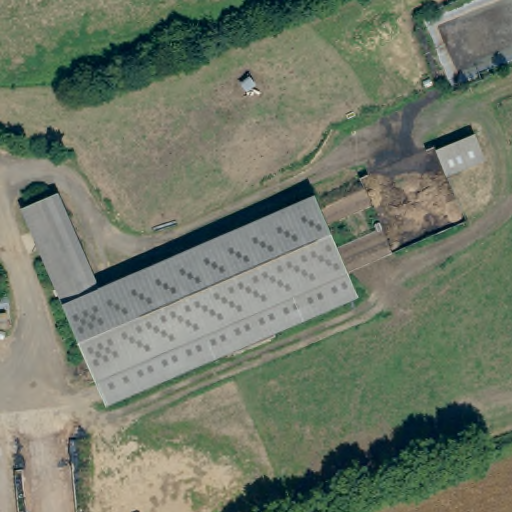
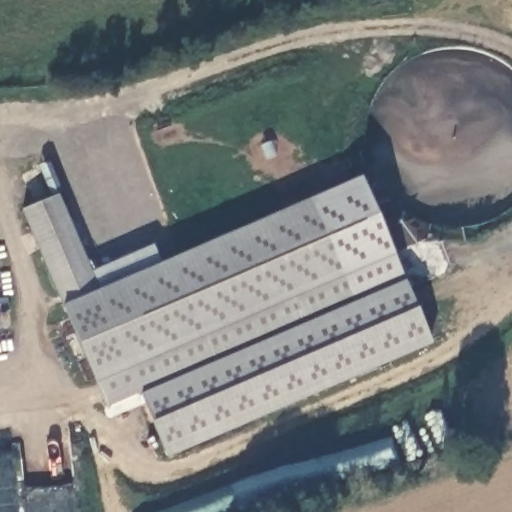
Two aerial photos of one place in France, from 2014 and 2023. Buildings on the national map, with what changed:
demolished [(490,159),(452,175),(442,150),(480,134),(490,159)]
new [(361,177),(394,256),(405,281),(432,345),(167,458),(141,395),(105,408),(102,401),(351,295),(311,199),(361,177)]
unchanged [(102,401),(19,206),(54,191),(95,287),(310,196),(351,295),(102,401)]

